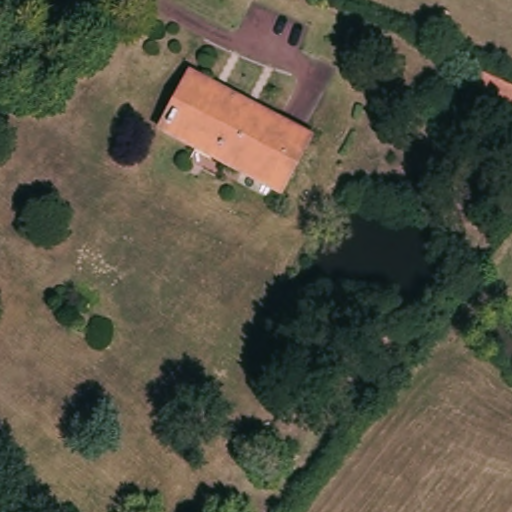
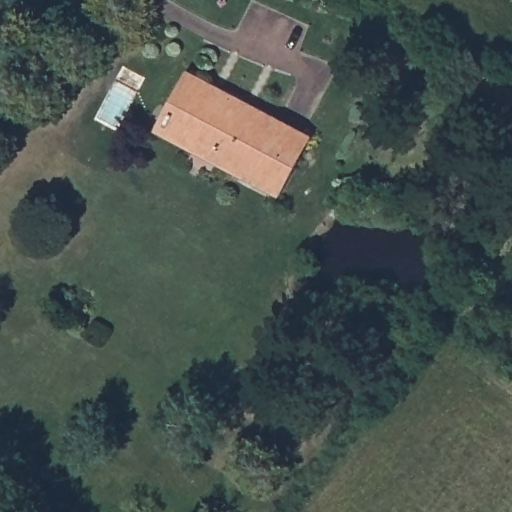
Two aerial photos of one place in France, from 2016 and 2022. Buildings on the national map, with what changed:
unchanged [(299,175),(292,173),(289,179),(289,178),(242,154),(204,135),(198,145),(168,130),(182,102),(177,99),(189,73),(218,87),(220,83),(242,92),(239,101),(251,106),(254,102),(313,131),(310,139),(315,141),(299,175)]
unchanged [(512,81),(512,99),(486,89),(492,73),(512,81)]
unchanged [(284,189),(198,145),(204,135),(242,154),(289,178),(289,179),(284,189)]

